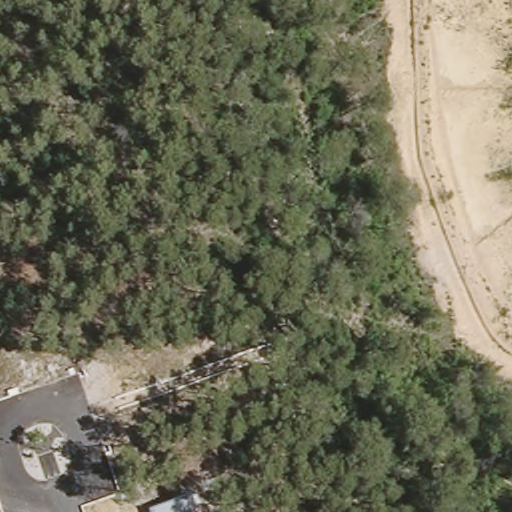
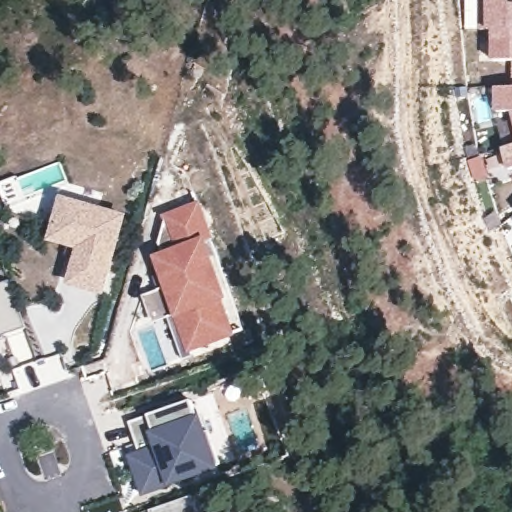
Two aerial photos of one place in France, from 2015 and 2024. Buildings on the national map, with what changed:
new [(481,30),(481,0),(512,0),(512,30),(494,30),(481,30)]
new [(493,61),(494,30),(512,30),(512,61),(493,61)]
new [(497,113),(498,88),(512,88),(512,112),(504,112),(497,113)]
new [(510,170),(504,148),(512,146),(512,169),(510,170)]
new [(165,287),(156,259),(166,216),(201,203),(215,240),(208,241),(230,301),(223,303),(237,338),(194,352),(195,358),(184,362),(169,319),(153,324),(144,297),(165,287)]
new [(56,247),(67,208),(128,225),(108,299),(75,290),(81,267),(70,264),(73,252),(56,247)]
new [(25,328),(0,335),(0,284),(9,282),(25,328)]
new [(129,423),(192,402),(214,468),(145,492),(137,470),(133,459),(141,456),(129,423)]
unchanged [(194,497),(199,512),(151,512),(194,497)]

